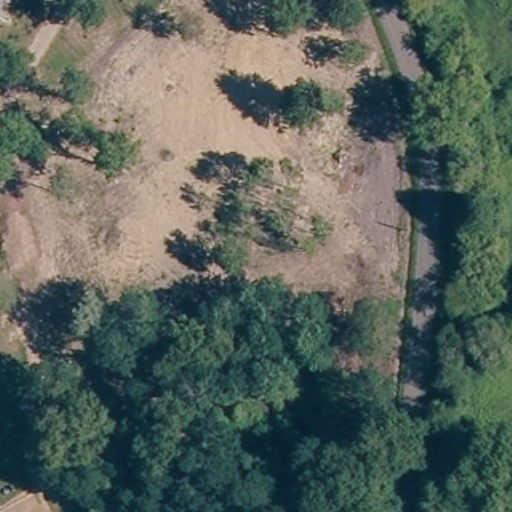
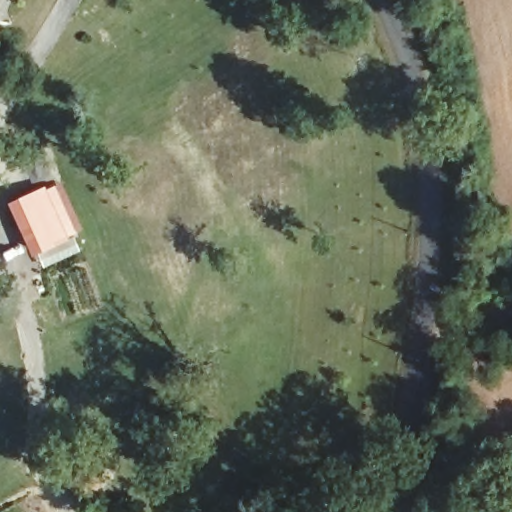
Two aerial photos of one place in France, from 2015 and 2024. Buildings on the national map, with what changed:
new [(49,189),(62,183),(82,230),(67,237),(69,240),(35,256),(10,200),(47,185),(49,189)]

